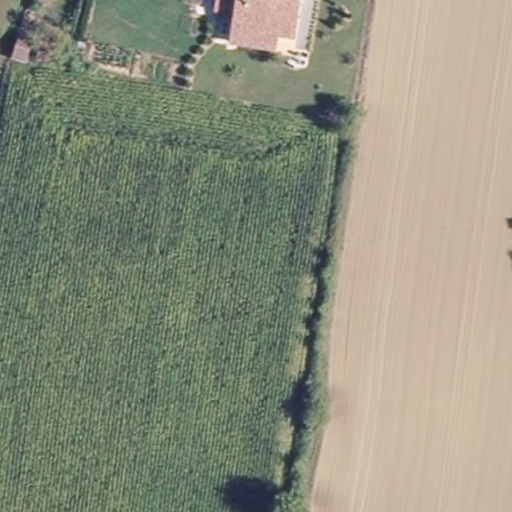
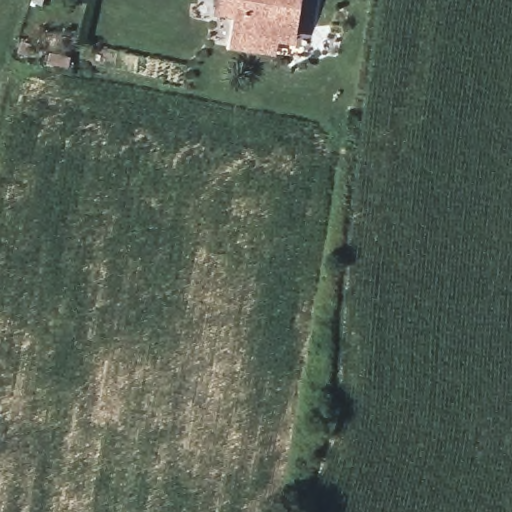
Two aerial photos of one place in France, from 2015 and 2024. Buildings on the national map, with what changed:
unchanged [(216,3),(216,0),(292,0),(289,27),(271,27),(270,40),(232,36),(232,33),(233,21),(235,5),(216,3)]

